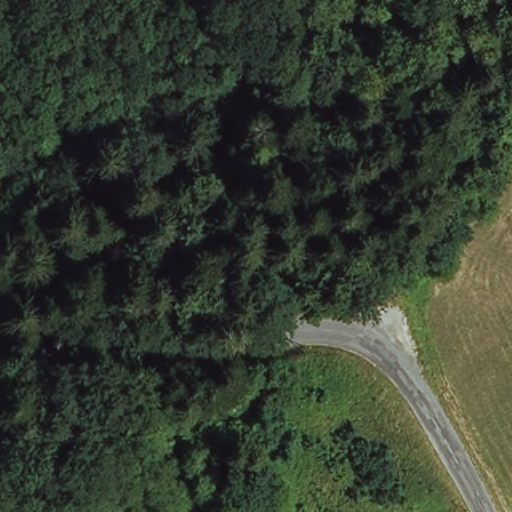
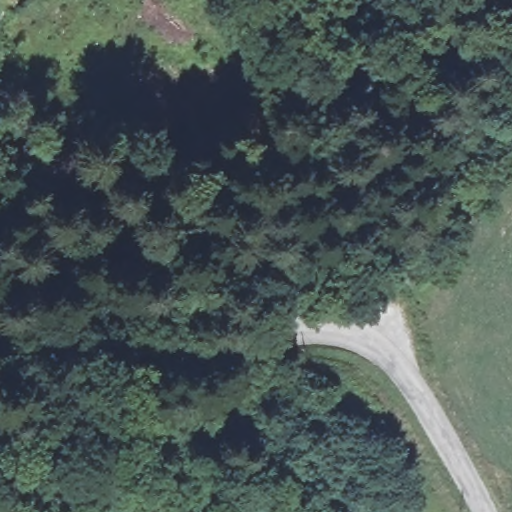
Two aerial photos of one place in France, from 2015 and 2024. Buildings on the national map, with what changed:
[]

